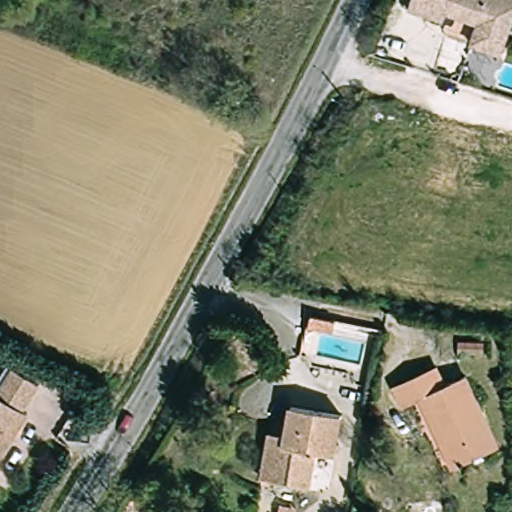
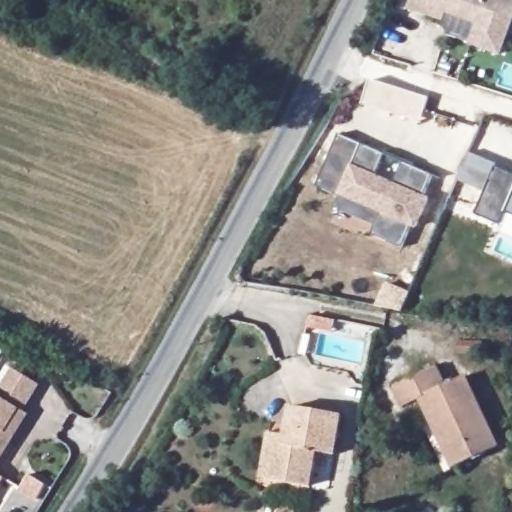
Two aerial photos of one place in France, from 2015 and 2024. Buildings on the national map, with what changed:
unchanged [(512,21),(501,47),(473,36),(480,18),(455,6),(448,18),(435,12),(415,4),(417,0),(512,0),(512,21)]
new [(384,153),(374,176),(395,184),(402,163),(435,177),(424,197),(430,200),(418,229),(411,227),(400,248),(371,236),(375,225),(335,210),(340,198),(315,187),(338,134),(384,153)]
new [(512,167),(512,214),(497,208),(492,220),(468,210),(491,158),(512,167)]
unchanged [(328,336),(300,332),(301,317),(330,322),(328,336)]
new [(23,412),(27,414),(0,460),(0,375),(5,366),(37,386),(23,412)]
unchanged [(432,368),(438,388),(458,380),(491,453),(450,472),(418,403),(401,409),(391,387),(432,368)]
demolished [(11,370),(35,385),(19,408),(26,413),(0,451),(0,385),(11,370)]
unchanged [(267,430),(289,432),(293,406),(346,412),(338,452),(319,450),(313,482),(273,476),(261,475),(267,430)]
new [(3,480),(0,485),(0,477),(3,480)]

